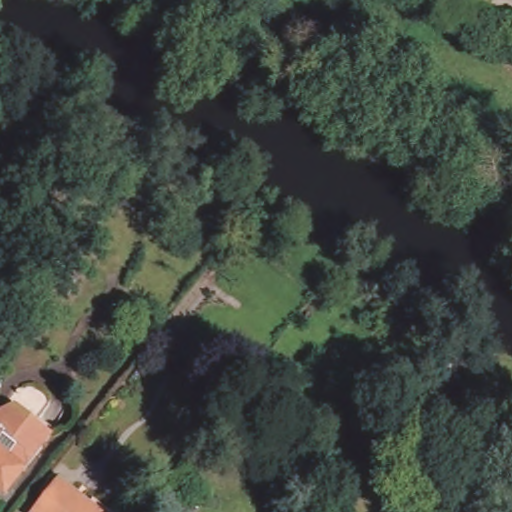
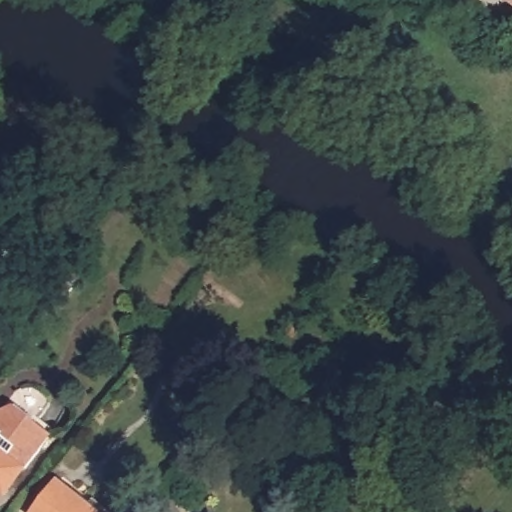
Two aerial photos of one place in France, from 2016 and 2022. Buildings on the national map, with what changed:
unchanged [(62,269),(48,289),(36,280),(50,260),(62,269)]
unchanged [(73,287),(60,304),(49,295),(61,278),(73,287)]
unchanged [(53,434),(25,469),(24,468),(4,494),(0,490),(0,413),(18,407),(53,434)]
unchanged [(62,482),(90,504),(95,499),(112,512),(37,512),(62,482)]

